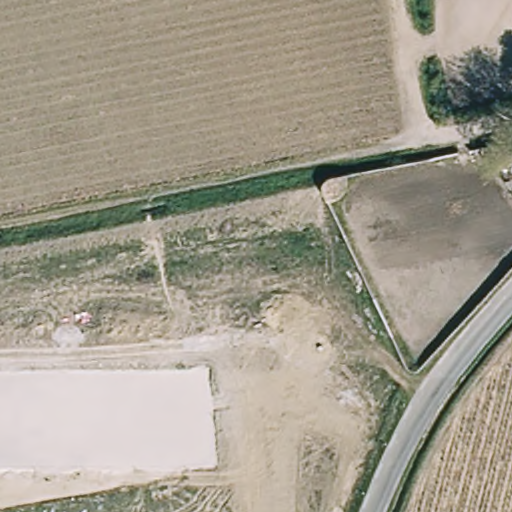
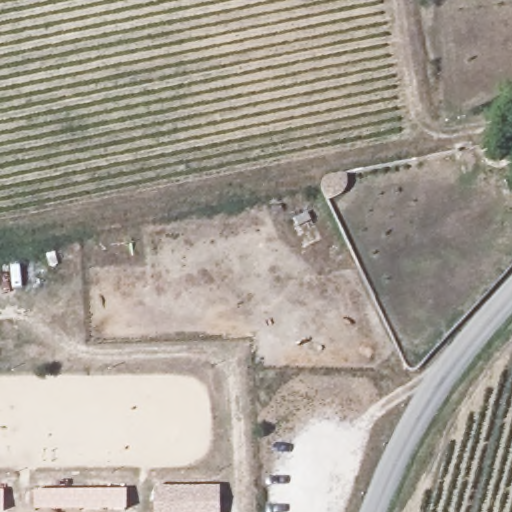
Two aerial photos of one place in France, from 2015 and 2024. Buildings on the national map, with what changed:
unchanged [(512,152),(512,163),(503,165),(488,158),(479,146),(507,141),(512,152)]
unchanged [(347,172),(347,194),(339,204),(331,207),(326,195),(328,176),(347,172)]
new [(155,512),(155,488),(220,487),(220,512),(155,512)]
new [(3,491),(3,512),(0,512),(0,491),(3,491)]
new [(34,512),(33,492),(127,492),(128,511),(34,512)]

